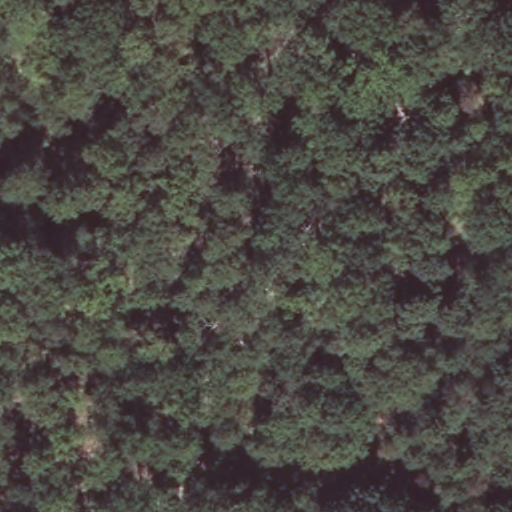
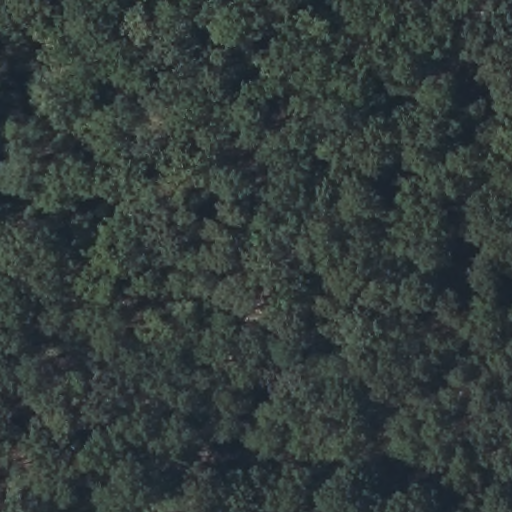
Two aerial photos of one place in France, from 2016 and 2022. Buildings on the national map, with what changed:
[]

